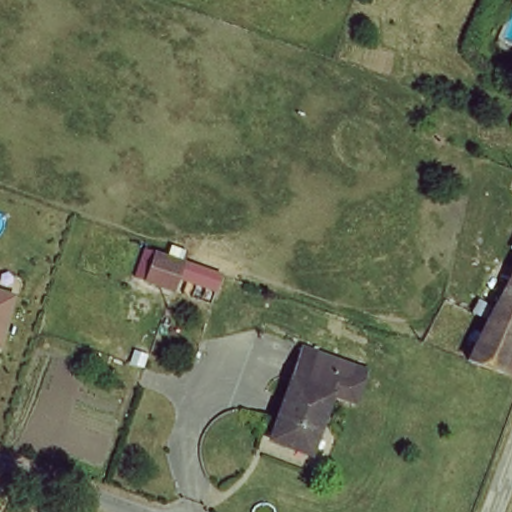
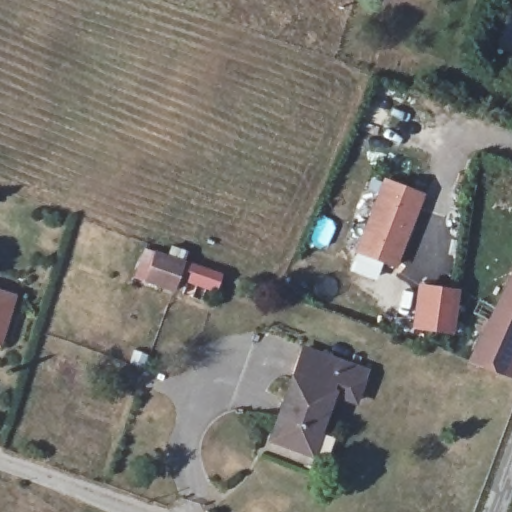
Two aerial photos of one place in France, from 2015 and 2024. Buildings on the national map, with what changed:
new [(382,177),(425,192),(397,267),(355,252),(382,177)]
unchanged [(225,294),(187,280),(182,296),(152,285),(163,255),(232,278),(225,294)]
new [(417,283),(460,289),(454,335),(411,329),(417,283)]
unchanged [(512,289),(512,319),(500,314),(512,289)]
unchanged [(0,348),(0,291),(17,296),(0,348)]
unchanged [(509,380),(473,368),(500,314),(512,319),(512,373),(509,380)]
unchanged [(335,400),(314,460),(272,445),(305,353),(370,377),(359,409),(335,400)]

